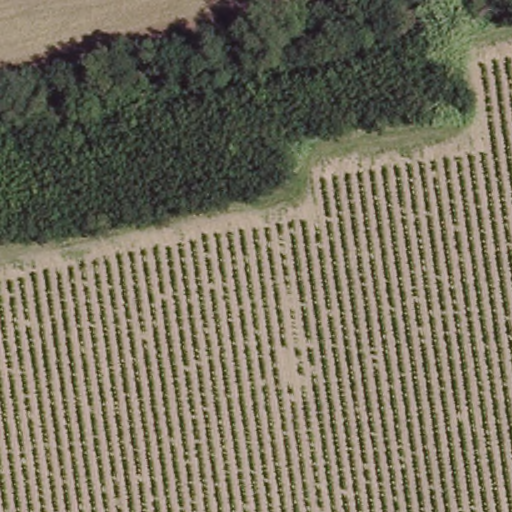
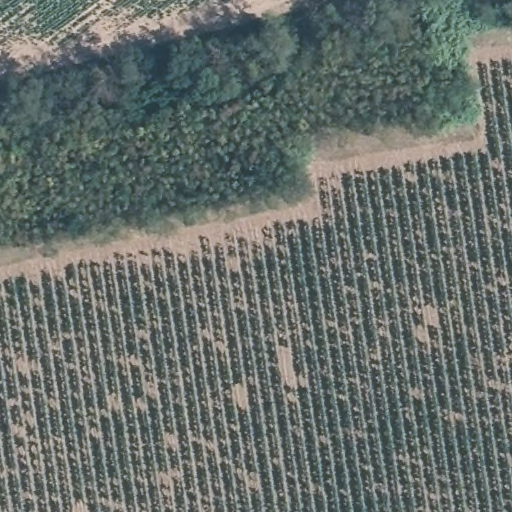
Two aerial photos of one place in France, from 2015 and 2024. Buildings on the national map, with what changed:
[]

